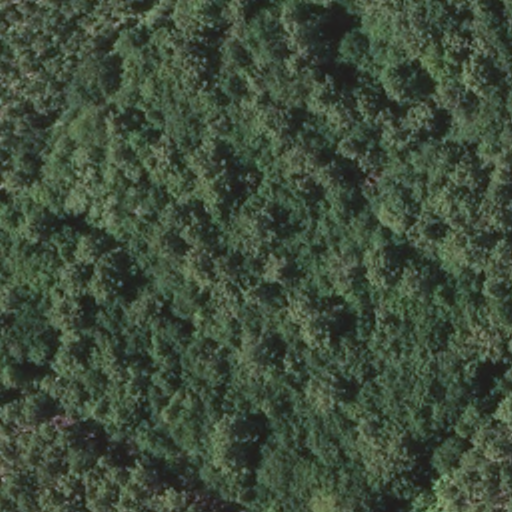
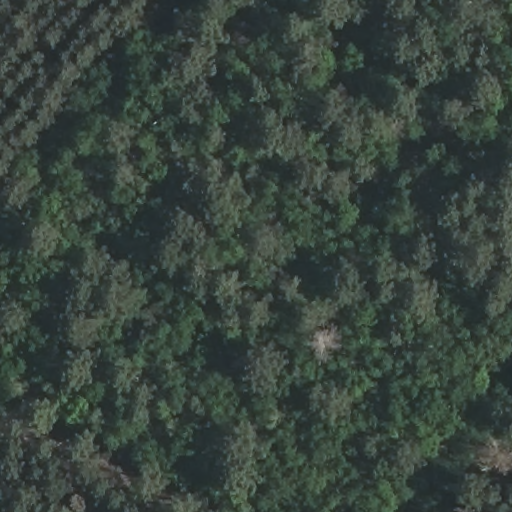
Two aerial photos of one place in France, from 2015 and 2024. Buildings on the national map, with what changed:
[]

